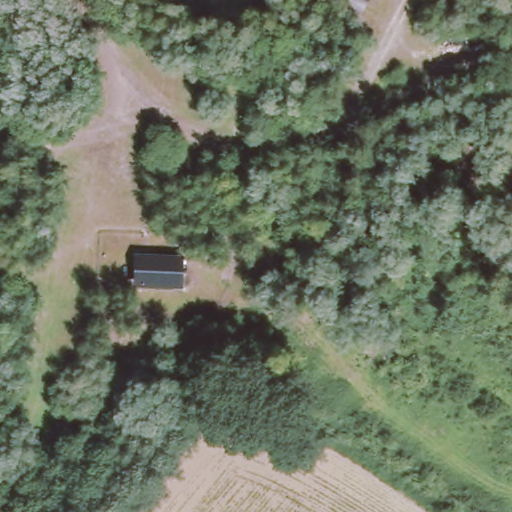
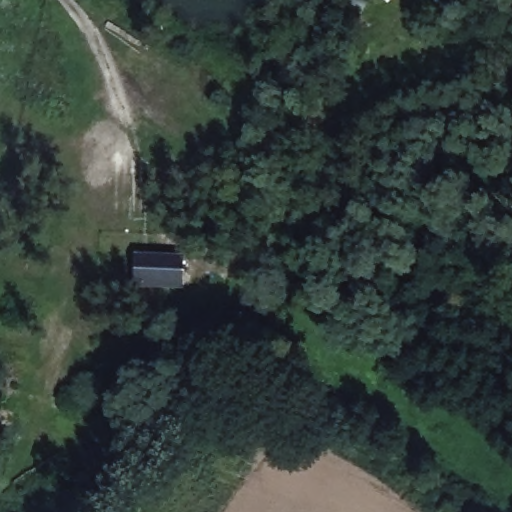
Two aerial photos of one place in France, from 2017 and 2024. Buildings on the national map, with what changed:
unchanged [(139,254),(188,258),(187,285),(136,284),(139,254)]

